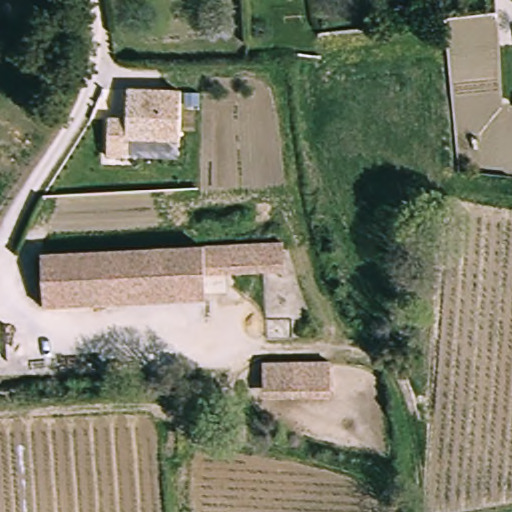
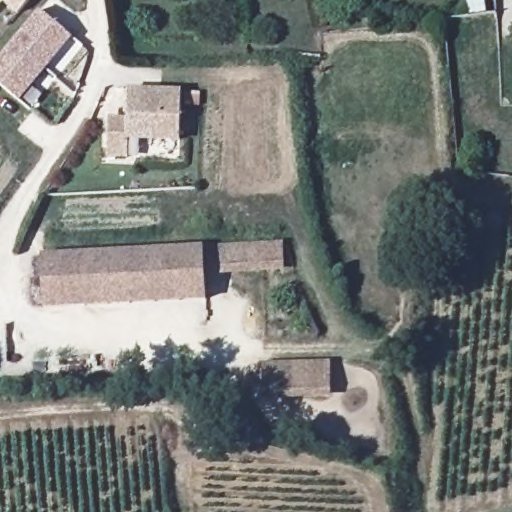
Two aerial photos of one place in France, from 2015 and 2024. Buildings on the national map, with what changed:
new [(18,16),(0,1),(0,0),(31,0),(18,16)]
new [(40,10),(71,37),(18,101),(0,86),(0,55),(40,10)]
unchanged [(131,135),(132,155),(112,156),(111,119),(131,117),(129,87),(181,85),(183,134),(131,135)]
unchanged [(290,244),(290,261),(209,263),(209,245),(290,244)]
unchanged [(209,263),(210,297),(50,300),(49,249),(209,245),(209,263)]
unchanged [(334,367),(334,394),(267,395),(267,368),(334,367)]

